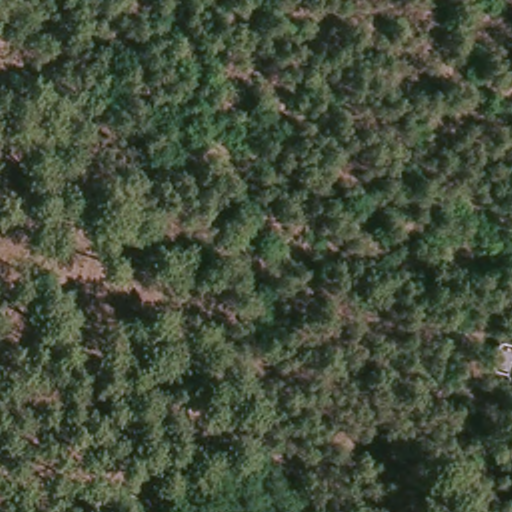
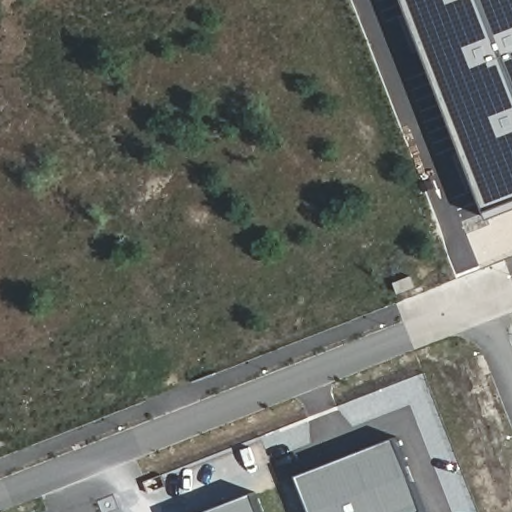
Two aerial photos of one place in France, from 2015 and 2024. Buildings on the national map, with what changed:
new [(405,0),(512,0),(512,210),(490,218),(405,0)]
new [(396,437),(426,512),(425,512),(313,512),(301,472),(396,437)]
new [(258,490),(267,512),(202,512),(258,490)]

